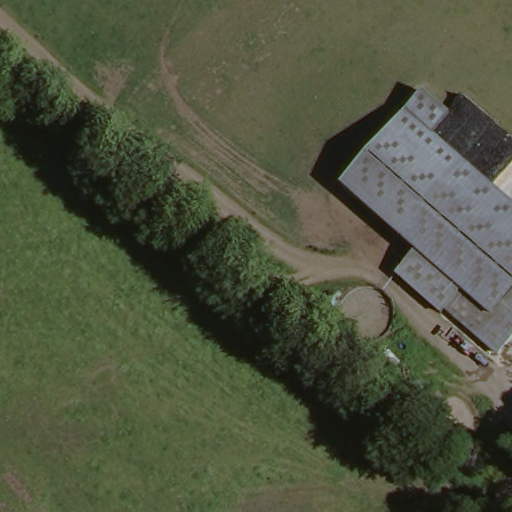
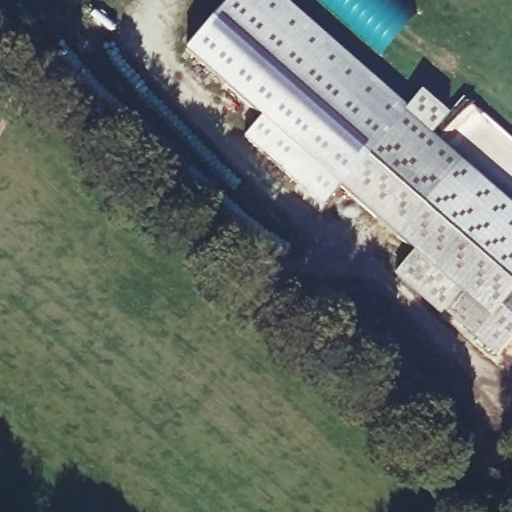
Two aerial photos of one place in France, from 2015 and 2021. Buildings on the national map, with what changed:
new [(345,180),(321,206),(245,140),(262,120),(185,53),(231,0),(284,0),(409,109),(345,180)]
unchanged [(443,311),(398,270),(417,248),(343,181),(428,88),(455,113),(435,135),(512,204),(512,339),(499,353),(447,306),(443,311)]

